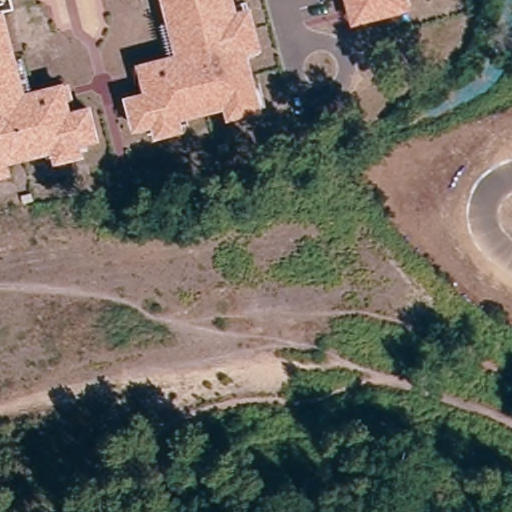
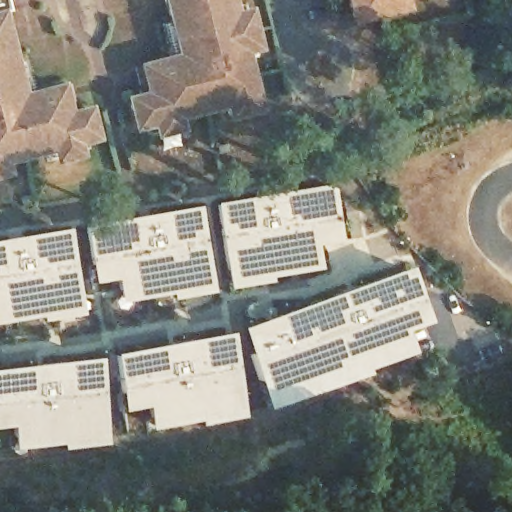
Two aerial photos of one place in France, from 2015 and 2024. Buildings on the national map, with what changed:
unchanged [(134,122),(127,93),(146,88),(139,60),(169,53),(167,41),(161,18),(169,16),(165,0),(231,0),(232,2),(242,0),(246,0),(252,24),(259,50),(245,53),(250,73),(257,71),(260,83),(264,102),(229,111),(226,102),(225,99),(185,109),(188,121),(147,131),(144,120),(134,122)]
unchanged [(349,0),(406,0),(407,3),(398,5),(379,10),(353,17),(352,10),(349,0)]
unchanged [(13,38),(18,56),(26,54),(35,88),(65,81),(72,109),(92,104),(99,133),(89,135),(92,147),(51,157),(49,145),(8,156),(9,158),(10,167),(0,170),(0,9),(5,7),(13,38)]
new [(332,183),(341,241),(318,245),(320,269),(270,278),(271,281),(229,288),(214,202),(332,183)]
new [(84,227),(199,206),(214,292),(173,299),(172,294),(120,303),(116,278),(94,283),(84,227)]
new [(41,316),(0,324),(0,240),(68,228),(83,314),(43,322),(41,316)]
new [(240,328),(408,266),(429,322),(405,330),(413,353),(367,369),(369,374),(270,409),(240,328)]
new [(203,426),(202,421),(153,431),(149,407),(124,412),(114,354),(230,332),(245,417),(203,426)]
new [(63,443),(15,450),(13,426),(0,428),(0,368),(99,357),(109,442),(64,449),(63,443)]

